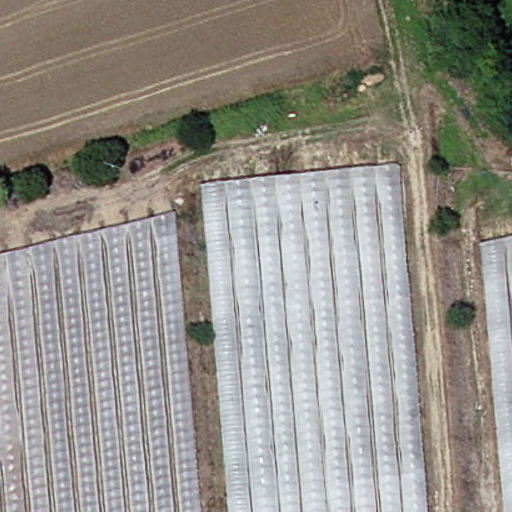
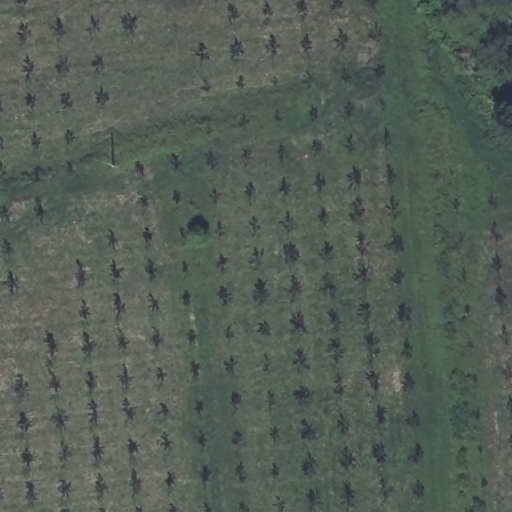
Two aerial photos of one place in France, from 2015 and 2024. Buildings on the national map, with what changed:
demolished [(205,181),(405,162),(433,512),(233,512),(205,181)]
demolished [(179,211),(204,512),(0,512),(0,256),(179,211)]
demolished [(512,236),(512,512),(508,512),(484,242),(512,236)]

